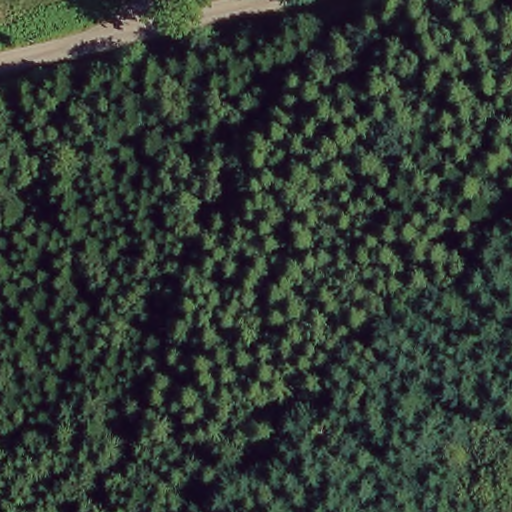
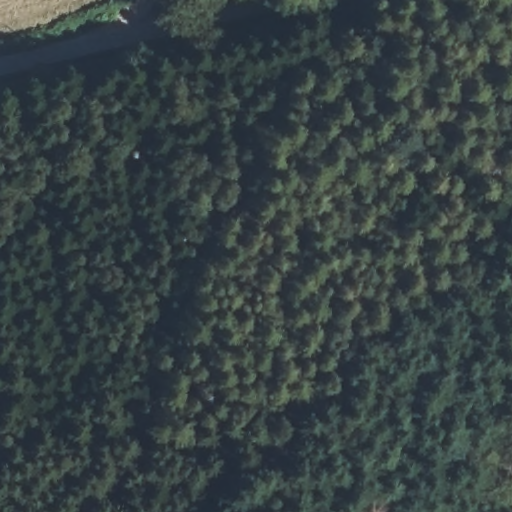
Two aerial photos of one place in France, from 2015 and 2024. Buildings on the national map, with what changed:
[]

